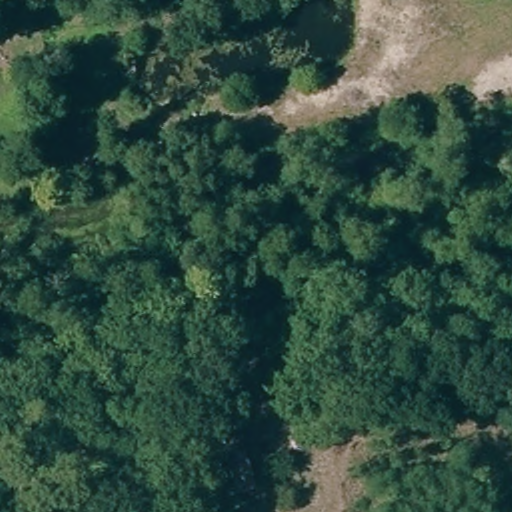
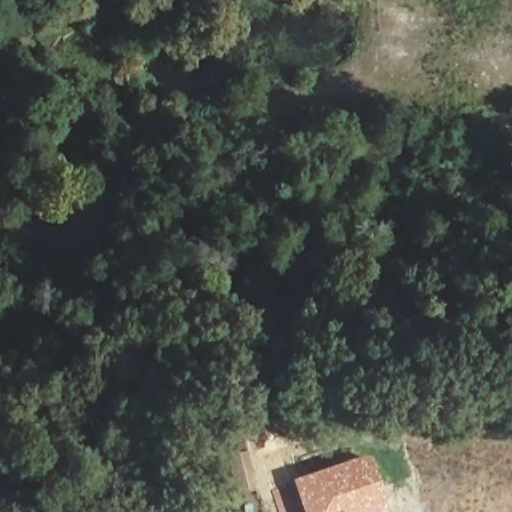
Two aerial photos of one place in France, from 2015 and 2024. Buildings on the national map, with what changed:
unchanged [(248,488),(234,492),(220,443),(235,439),(248,488)]
new [(371,451),(388,508),(379,512),(301,512),(289,480),(371,451)]
new [(289,480),(301,512),(277,512),(268,489),(289,480)]
new [(388,508),(389,512),(379,512),(388,508)]

